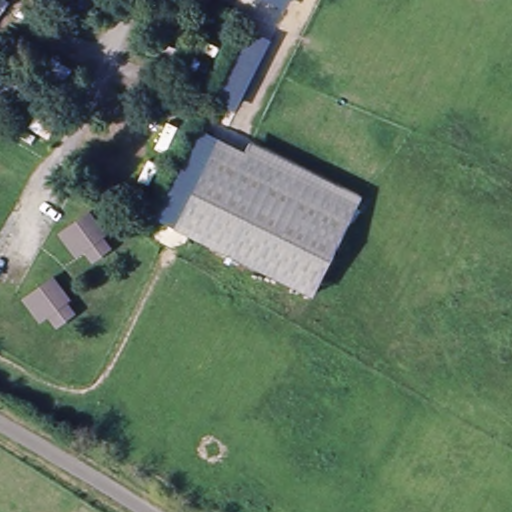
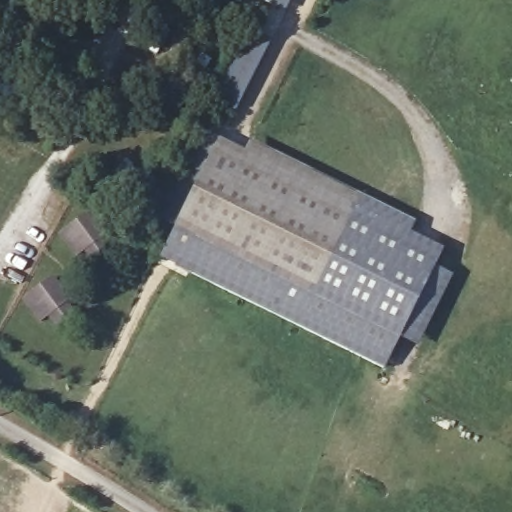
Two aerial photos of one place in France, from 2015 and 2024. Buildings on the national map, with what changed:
unchanged [(279,7),(265,0),(286,0),(282,9),(279,7)]
unchanged [(263,43),(267,45),(233,114),(227,110),(215,105),(249,36),(263,43)]
unchanged [(316,291),(167,219),(156,214),(199,125),(212,131),(358,203),(316,291)]
new [(316,291),(358,203),(246,148),(251,140),(417,222),(411,235),(443,250),(436,268),(453,276),(418,349),(400,339),(385,367),(158,259),(176,223),(316,291)]
unchanged [(92,263),(84,252),(76,258),(59,236),(87,215),(104,237),(100,240),(108,251),(92,263)]
unchanged [(57,333),(48,322),(40,328),(23,306),(51,285),(68,307),(64,310),(73,321),(57,333)]

